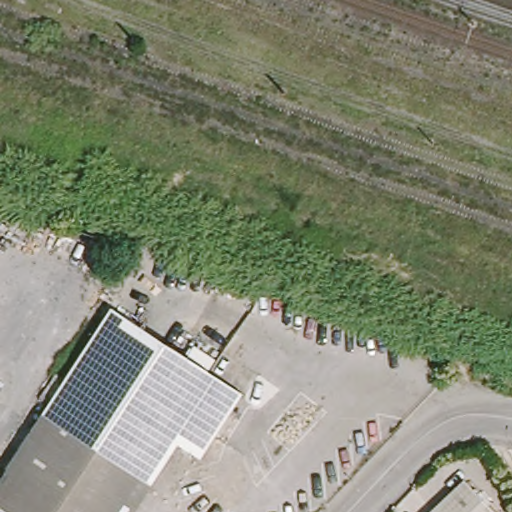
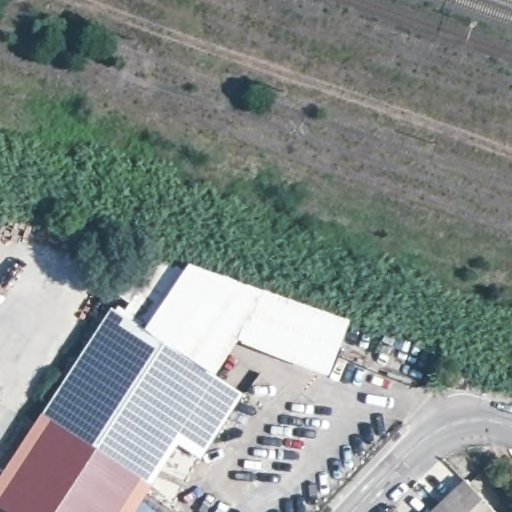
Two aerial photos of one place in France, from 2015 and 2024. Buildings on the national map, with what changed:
new [(242,345),(242,343),(240,341),(216,378),(145,332),(123,318),(115,313),(119,307),(125,311),(130,304),(115,293),(128,275),(144,284),(162,260),(187,271),(190,265),(349,321),(328,377),(242,345)]
unchanged [(0,483),(112,311),(123,318),(1,509),(0,508),(0,483)]
unchanged [(204,461),(182,447),(170,438),(121,512),(6,512),(1,509),(123,318),(245,397),(204,461)]
unchanged [(121,512),(170,438),(182,447),(139,512),(121,512)]
unchanged [(491,512),(433,512),(462,483),(491,512)]

